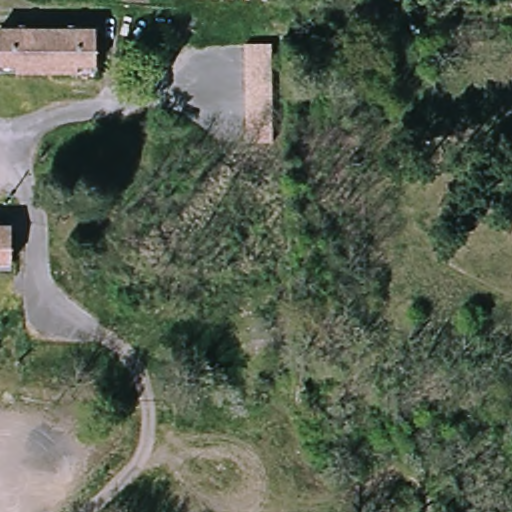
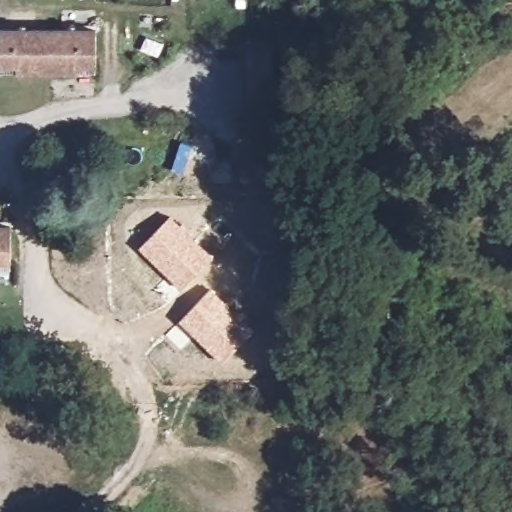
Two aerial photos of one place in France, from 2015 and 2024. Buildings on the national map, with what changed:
unchanged [(94,55),(78,54),(77,70),(13,68),(14,54),(0,54),(0,23),(95,27),(94,55)]
unchanged [(270,43),(268,143),(243,140),(244,40),(270,43)]
new [(214,258),(182,290),(140,249),(172,215),(214,258)]
unchanged [(10,262),(0,263),(0,229),(10,229),(10,262)]
new [(179,322),(213,288),(255,330),(223,364),(179,322)]

